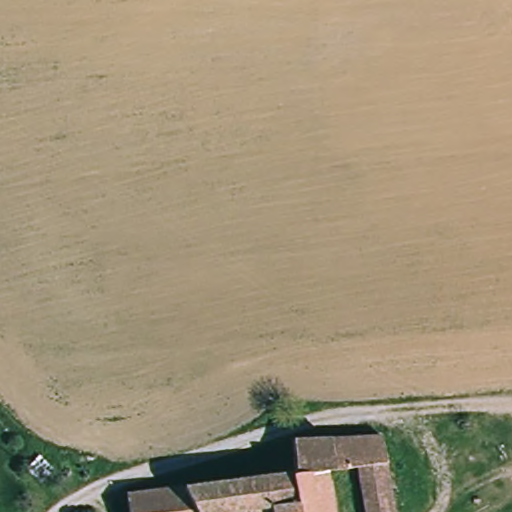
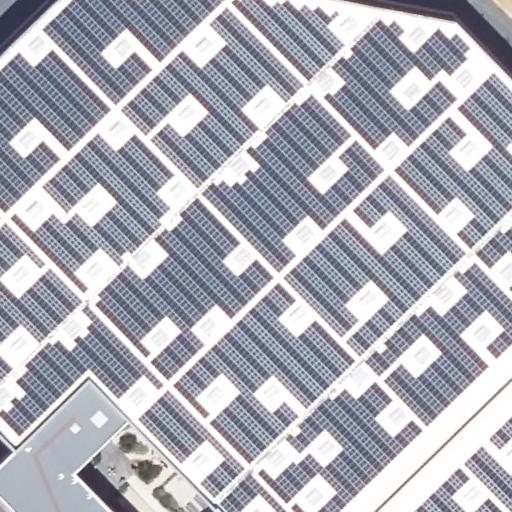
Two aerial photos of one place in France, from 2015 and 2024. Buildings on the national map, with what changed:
new [(0,428),(0,48),(50,0),(374,0),(455,16),(512,74),(512,512),(223,512),(224,511),(128,411),(73,466),(118,512),(0,512),(0,456),(14,442),(0,428)]
demolished [(131,512),(129,495),(297,474),(296,441),(344,439),(385,437),(388,462),(397,512),(366,512),(358,466),(336,469),(327,470),(334,512),(131,512)]

